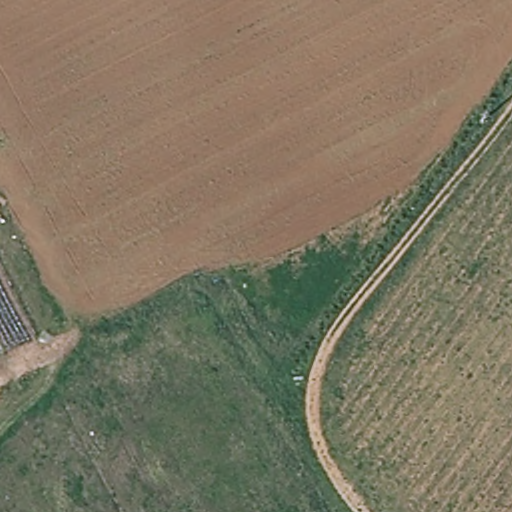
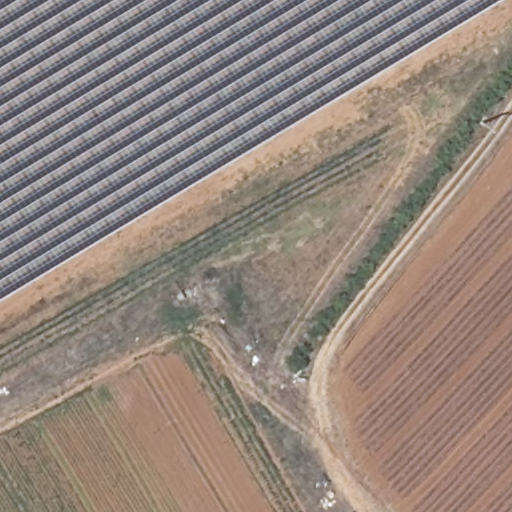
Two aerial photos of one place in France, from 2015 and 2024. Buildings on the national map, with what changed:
new [(0,0),(488,0),(0,293),(0,0)]
demolished [(0,354),(0,257),(39,333),(0,354)]

